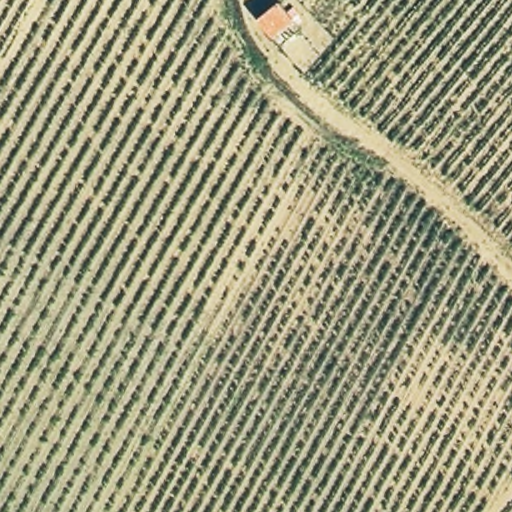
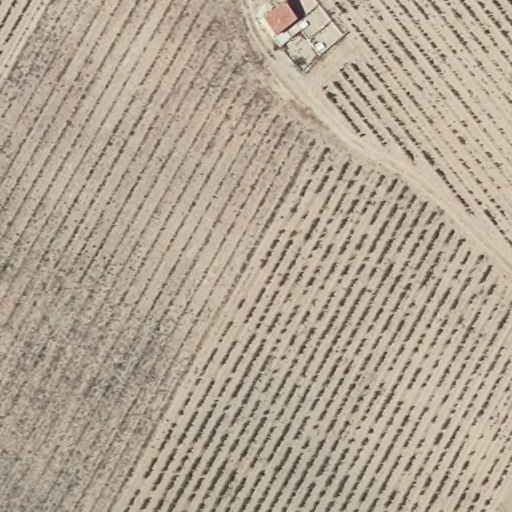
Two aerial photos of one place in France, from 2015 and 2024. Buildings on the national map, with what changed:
unchanged [(282,1),(298,13),(277,35),(260,21),(282,1)]

